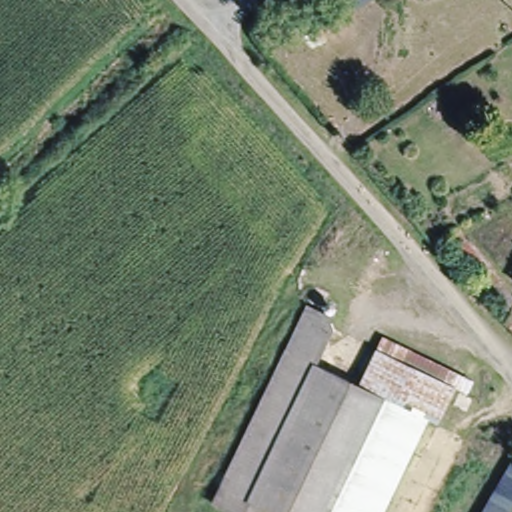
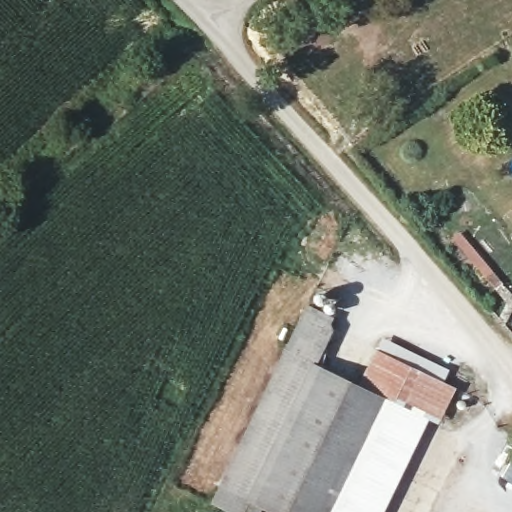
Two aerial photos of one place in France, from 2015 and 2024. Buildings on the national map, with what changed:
unchanged [(512,287),(510,286),(512,281),(512,287)]
unchanged [(338,320),(316,367),(358,388),(428,421),(385,512),(215,512),(210,509),(306,309),(338,320)]
unchanged [(383,337),(476,382),(469,395),(456,388),(439,427),(428,421),(358,388),(383,337)]
demolished [(512,465),(512,510),(511,512),(485,512),(512,465)]
new [(512,485),(506,481),(512,472),(512,485)]

